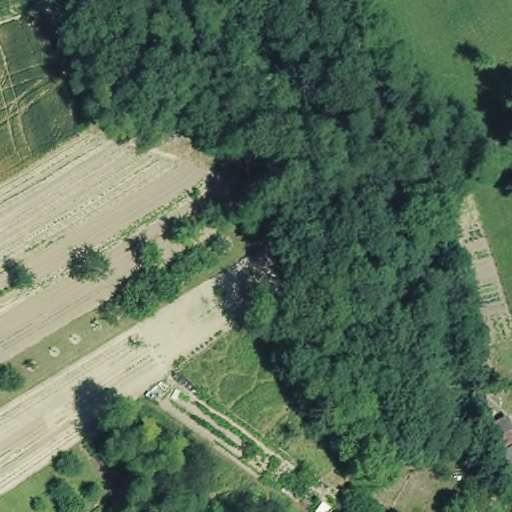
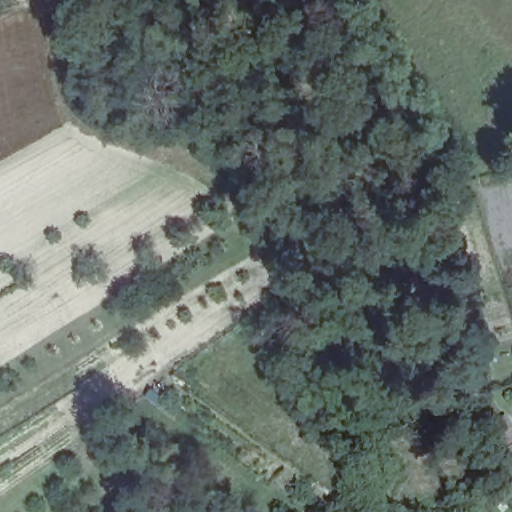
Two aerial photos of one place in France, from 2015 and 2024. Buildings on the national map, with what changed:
unchanged [(486,447),(498,440),(483,418),(506,406),(512,418),(512,480),(507,483),(486,447)]

